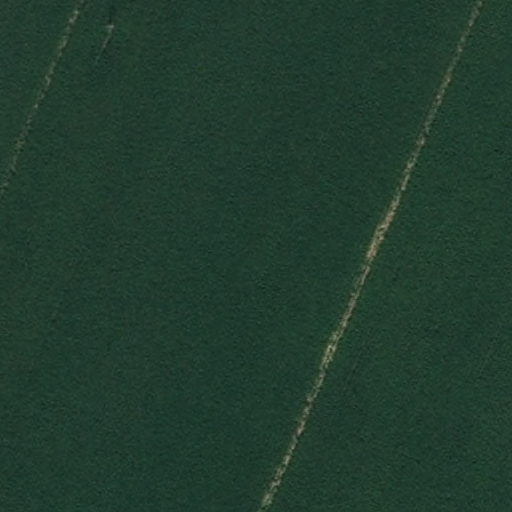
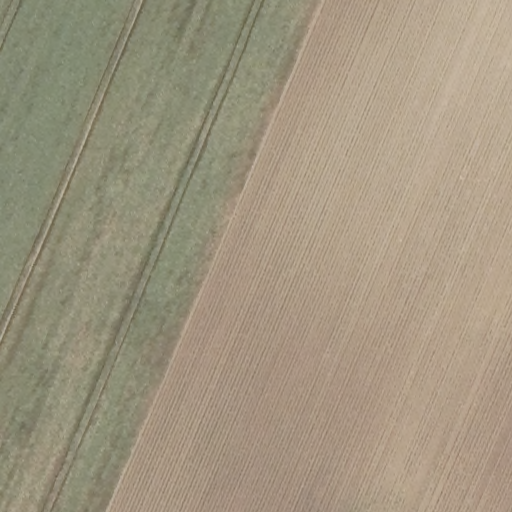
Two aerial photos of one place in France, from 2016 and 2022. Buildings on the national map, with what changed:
[]

